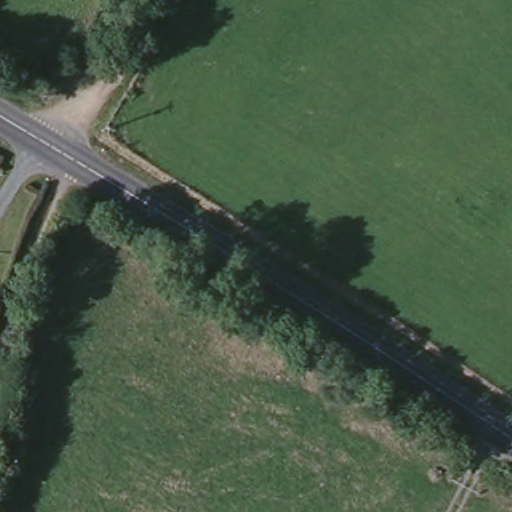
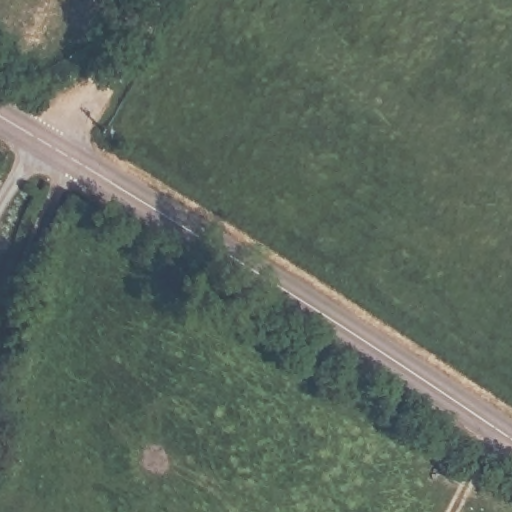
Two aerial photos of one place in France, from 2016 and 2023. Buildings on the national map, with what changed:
[]

